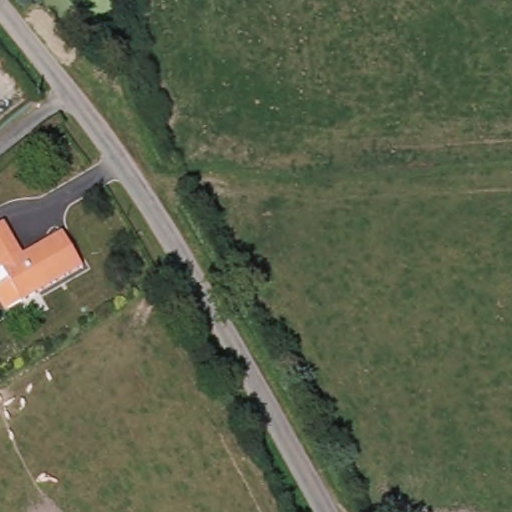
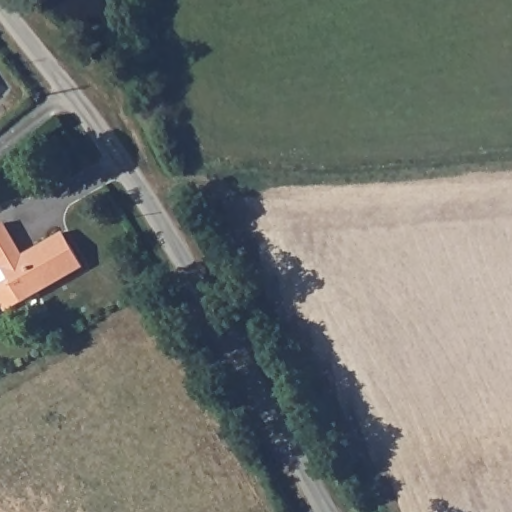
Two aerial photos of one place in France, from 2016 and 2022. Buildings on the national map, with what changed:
unchanged [(26,256),(67,231),(88,266),(10,312),(0,295),(0,224),(5,221),(26,256)]

